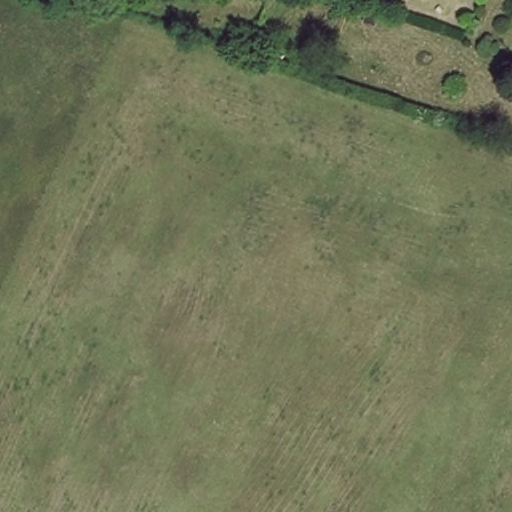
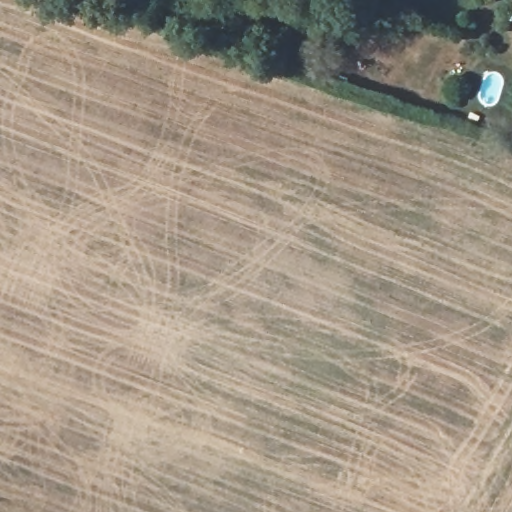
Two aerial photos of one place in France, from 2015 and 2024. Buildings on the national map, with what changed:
[]

